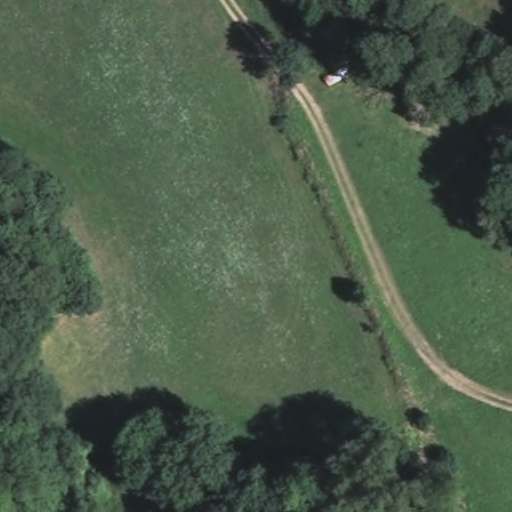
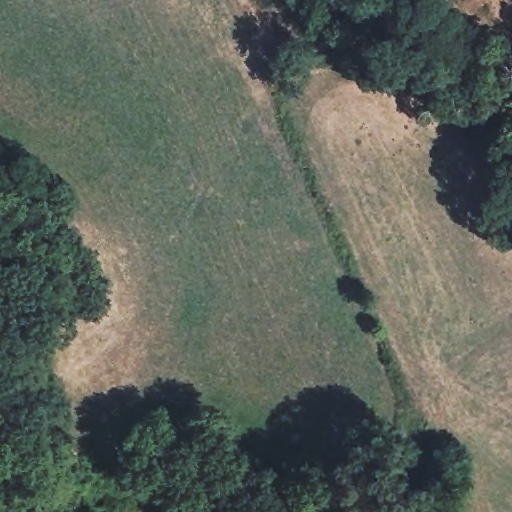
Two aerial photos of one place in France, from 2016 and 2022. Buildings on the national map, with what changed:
[]

